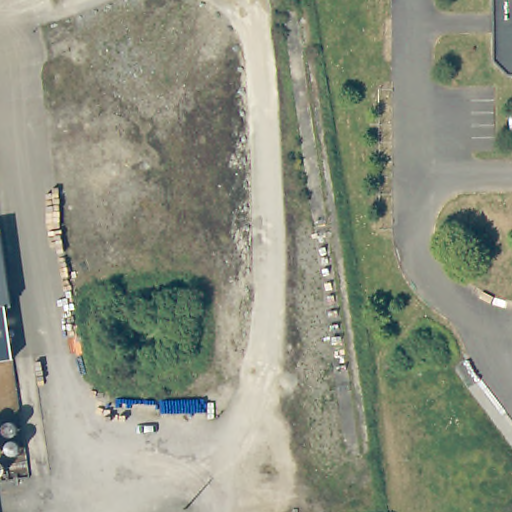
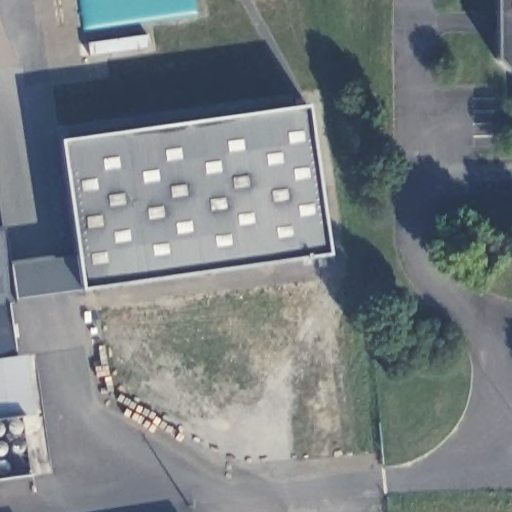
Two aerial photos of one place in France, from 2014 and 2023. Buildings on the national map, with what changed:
unchanged [(495,63),(496,0),(512,0),(512,78),(510,78),(495,63)]
new [(15,299),(10,265),(75,257),(59,141),(306,107),(326,255),(80,290),(15,299)]
unchanged [(15,304),(0,306),(0,230),(6,229),(15,304)]
new [(0,360),(0,306),(5,305),(13,358),(0,360)]
new [(0,420),(0,360),(13,358),(24,356),(32,416),(0,420)]

